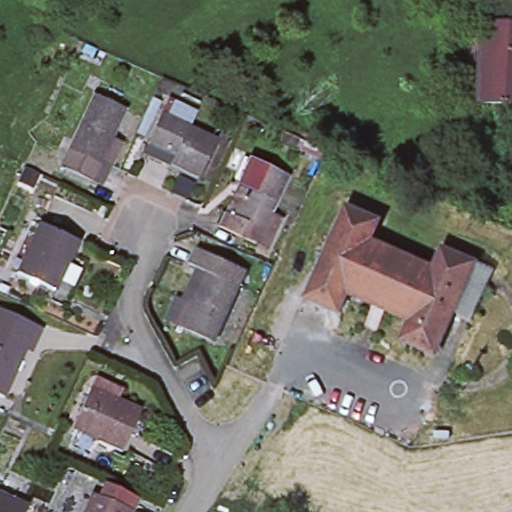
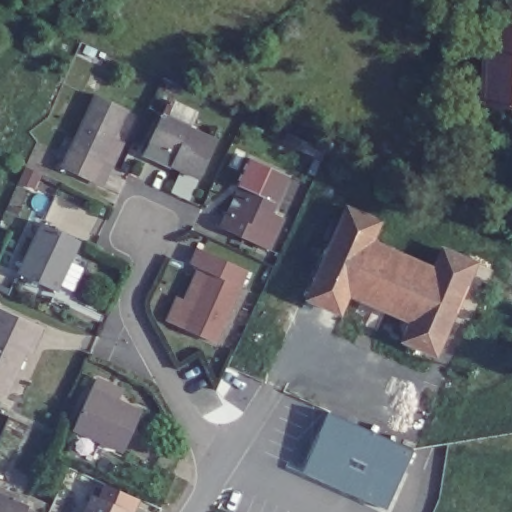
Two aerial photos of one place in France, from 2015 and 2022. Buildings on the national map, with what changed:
unchanged [(483,51),(485,21),(512,24),(512,103),(480,101),(483,51)]
unchanged [(69,149),(95,93),(127,107),(112,137),(123,141),(103,184),(92,180),(60,166),(69,149)]
unchanged [(149,142),(162,114),(215,138),(198,176),(172,165),(144,153),(149,142)]
unchanged [(224,229),(230,215),(243,188),(256,160),(294,177),(269,232),(262,245),(224,229)]
unchanged [(370,240),(433,268),(442,247),(475,262),(435,354),(402,339),(411,319),(348,291),(339,311),(307,297),(346,206),(379,220),(370,240)]
unchanged [(79,241),(56,290),(17,273),(40,223),(79,241)]
unchanged [(182,327),(183,324),(167,317),(176,298),(182,301),(198,266),(189,262),(196,245),(245,268),(239,284),(214,340),(182,327)]
unchanged [(42,327),(35,343),(29,341),(2,396),(0,395),(0,307),(42,327)]
unchanged [(122,449),(71,427),(90,387),(112,397),(119,382),(142,392),(135,407),(140,410),(122,449)]
new [(415,444),(414,449),(386,509),(301,471),(328,413),(331,407),(415,444)]
unchanged [(85,499),(95,502),(100,488),(129,502),(124,512),(80,512),(85,499)]
unchanged [(25,504),(22,512),(0,512),(0,493),(25,504)]

